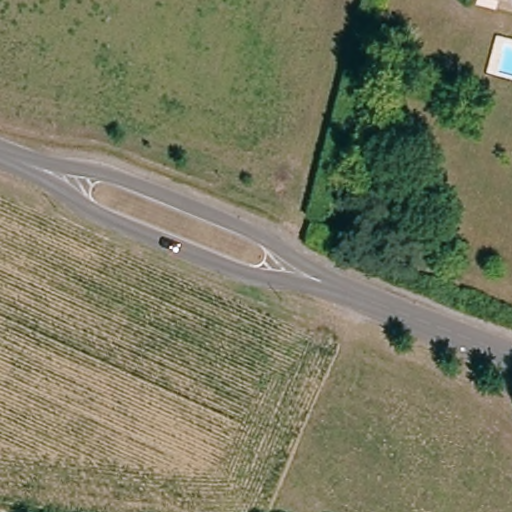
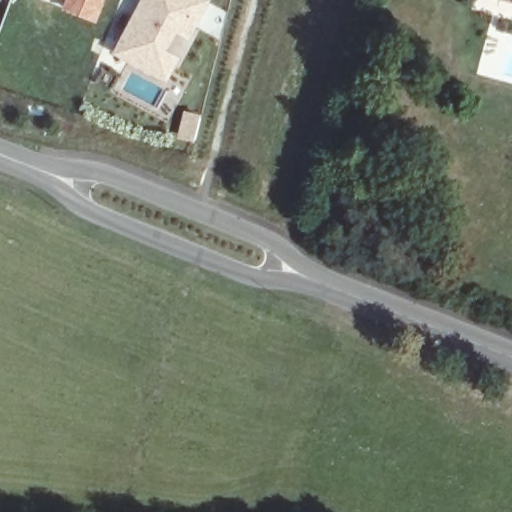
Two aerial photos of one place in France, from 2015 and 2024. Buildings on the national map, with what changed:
new [(60,10),(64,0),(105,0),(96,24),(60,10)]
new [(126,42),(141,10),(145,12),(149,5),(145,2),(145,0),(209,0),(190,40),(169,30),(157,55),(177,65),(167,85),(106,55),(115,36),(126,42)]

